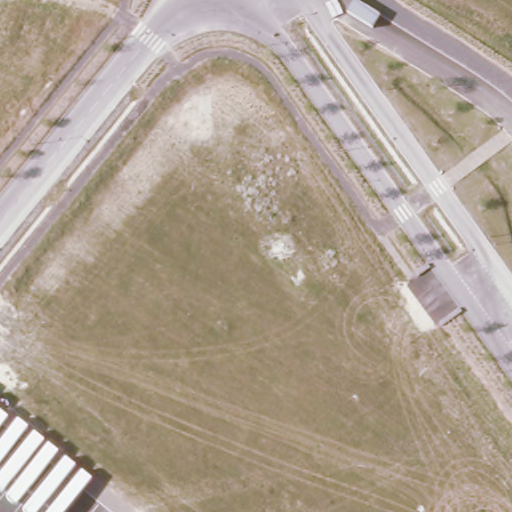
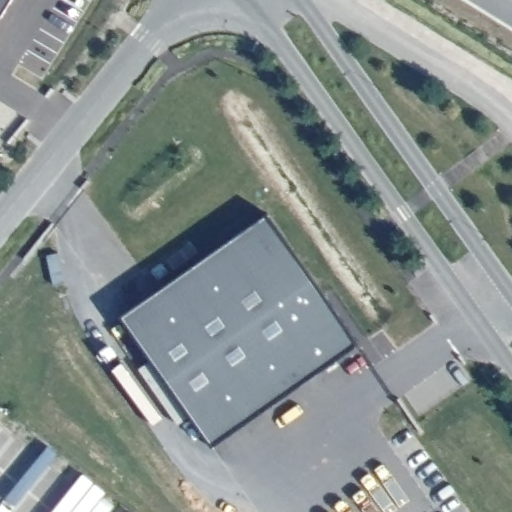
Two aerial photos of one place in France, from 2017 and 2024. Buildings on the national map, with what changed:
new [(12,0),(0,19),(0,0),(12,0)]
new [(266,216),(360,344),(215,450),(120,320),(266,216)]

